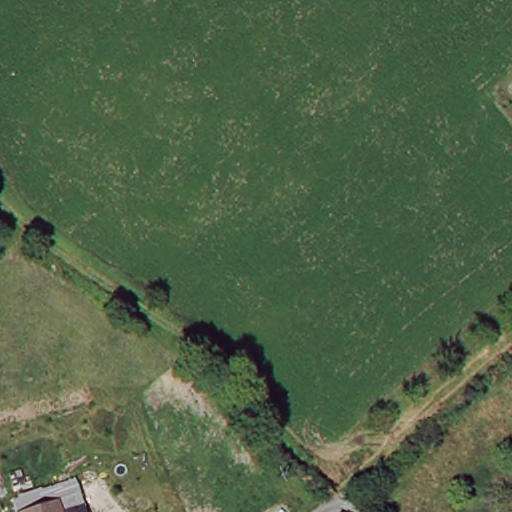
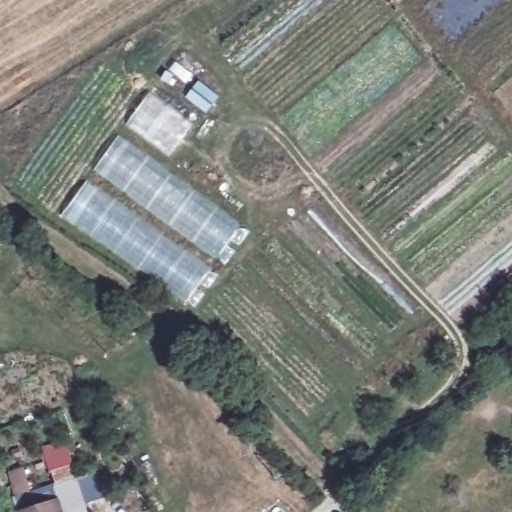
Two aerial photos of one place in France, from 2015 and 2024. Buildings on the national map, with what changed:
new [(187,302),(63,217),(119,137),(240,224),(187,302)]
unchanged [(66,512),(15,512),(60,497),(66,512)]

